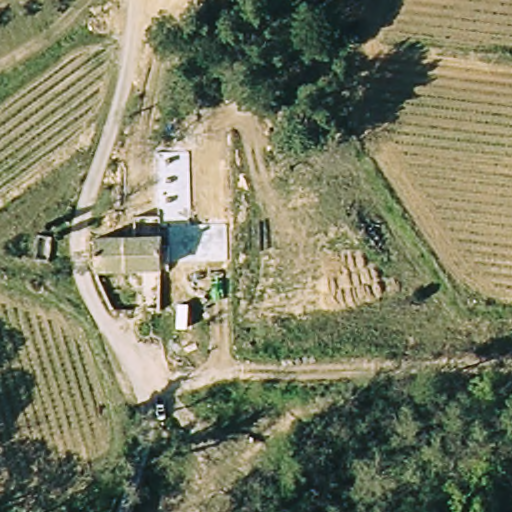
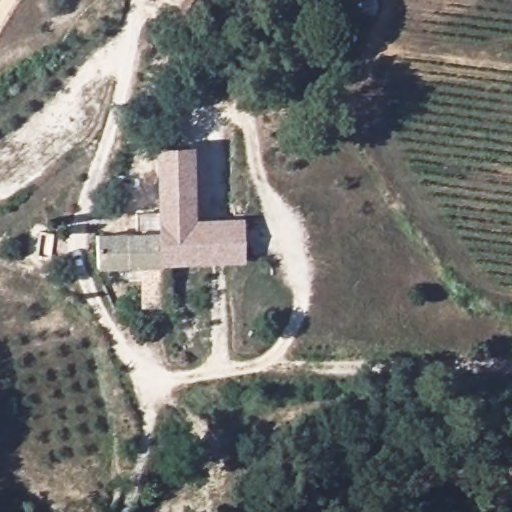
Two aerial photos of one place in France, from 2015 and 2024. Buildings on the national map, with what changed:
new [(160,231),(138,231),(137,214),(157,214),(155,146),(193,145),(194,218),(243,218),(244,263),(163,264),(160,231)]
unchanged [(160,231),(163,264),(98,266),(97,233),(160,231)]

